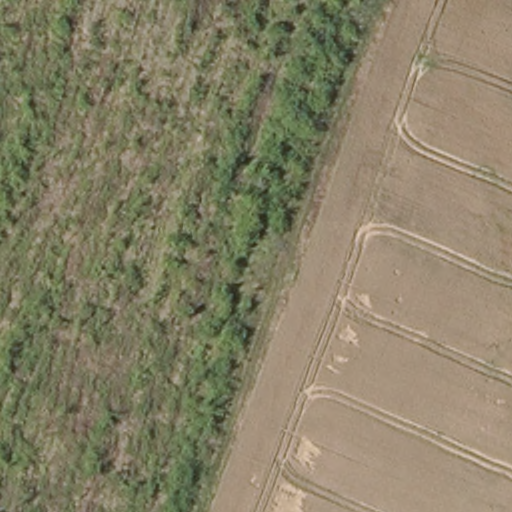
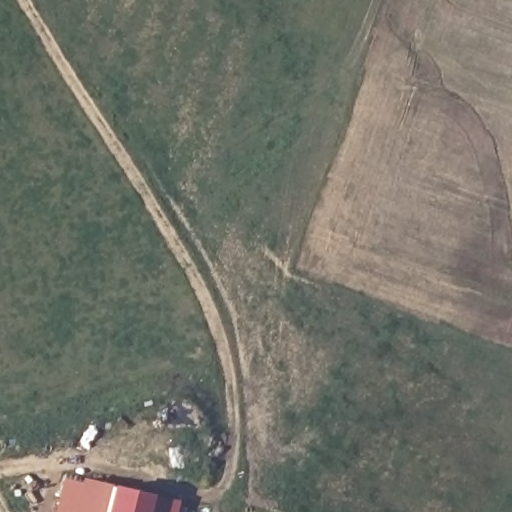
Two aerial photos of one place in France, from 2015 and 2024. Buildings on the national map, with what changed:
new [(79,481),(80,477),(109,483),(149,492),(176,499),(173,512),(52,512),(61,478),(79,481)]

